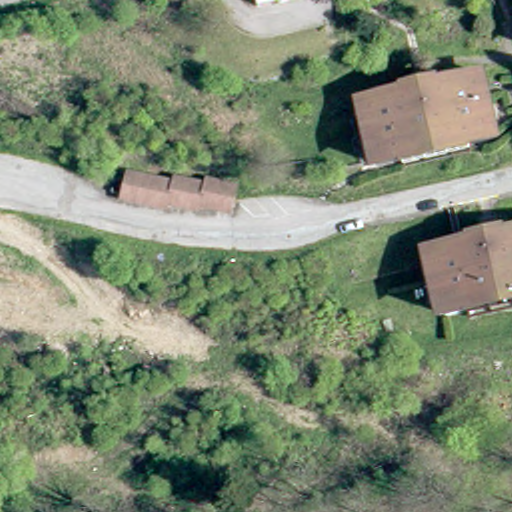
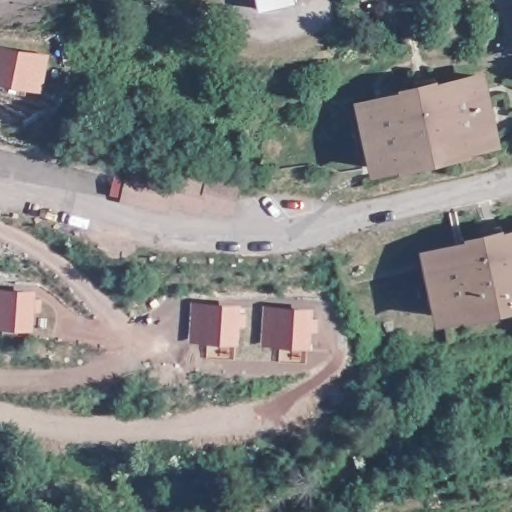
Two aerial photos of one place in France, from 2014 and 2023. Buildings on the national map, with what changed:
unchanged [(254,0),(270,0),(255,4),(254,0)]
new [(49,55),(43,91),(0,82),(0,46),(49,55)]
unchanged [(491,138),(378,167),(359,104),(474,73),(491,138)]
unchanged [(238,185),(234,210),(120,198),(125,167),(238,185)]
unchanged [(428,249),(512,224),(512,295),(446,313),(428,249)]
new [(35,329),(0,327),(0,289),(36,291),(35,329)]
new [(240,343),(189,341),(191,302),(242,305),(240,343)]
new [(312,347),(262,344),(264,306),(314,308),(312,347)]

